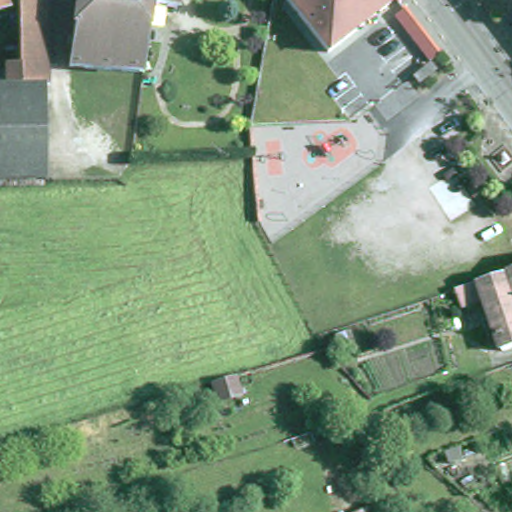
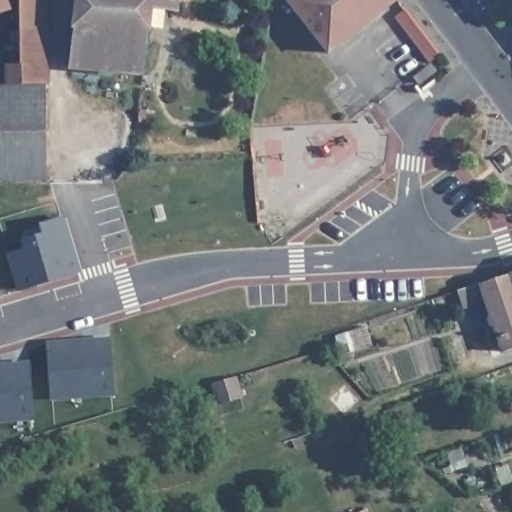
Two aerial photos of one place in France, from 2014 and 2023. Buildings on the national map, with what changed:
unchanged [(0,9),(0,0),(3,0),(6,7),(0,9)]
unchanged [(44,86),(41,86),(42,181),(0,181),(0,87),(5,87),(5,65),(17,65),(17,10),(16,0),(43,0),(44,86)]
unchanged [(172,6),(149,0),(139,70),(67,64),(74,0),(173,0),(172,6)]
unchanged [(391,0),(324,51),(285,0),(390,0),(391,0)]
new [(407,8),(441,54),(431,62),(397,15),(407,8)]
new [(42,285),(24,291),(12,258),(30,252),(27,243),(47,236),(45,227),(65,220),(80,269),(81,273),(42,285)]
unchanged [(504,347),(485,294),(467,300),(462,285),(512,269),(512,345),(504,347)]
new [(0,291),(1,294),(2,298),(0,299),(0,291)]
new [(56,400),(52,350),(52,345),(94,342),(112,341),(117,396),(97,397),(77,398),(56,400)]
new [(32,366),(36,420),(16,422),(0,423),(0,368),(12,367),(32,366)]
unchanged [(242,396),(221,402),(215,383),(236,376),(242,396)]
unchanged [(370,512),(362,512),(369,510),(370,512)]

